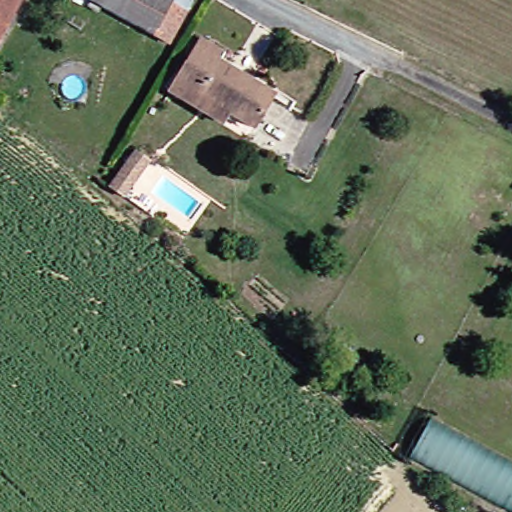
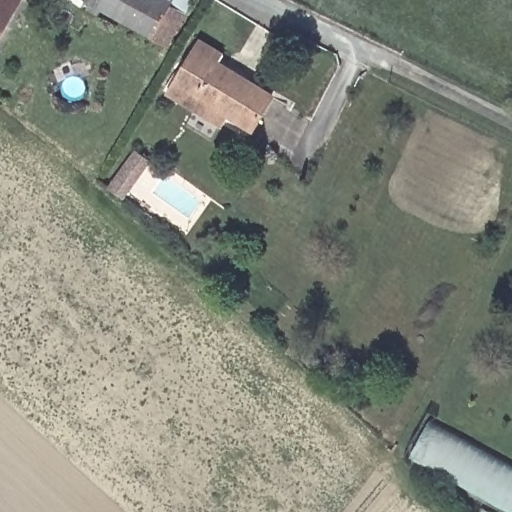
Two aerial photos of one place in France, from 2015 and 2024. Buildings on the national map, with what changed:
unchanged [(0,46),(0,0),(28,0),(0,46)]
unchanged [(160,40),(93,3),(94,0),(172,0),(178,3),(160,40)]
unchanged [(172,0),(179,0),(178,3),(172,0)]
unchanged [(258,130),(238,117),(229,128),(175,95),(207,40),(230,53),(227,63),(280,93),(258,130)]
unchanged [(141,180),(129,204),(111,194),(124,172),(141,180)]
unchanged [(512,465),(512,510),(416,458),(434,424),(512,465)]

